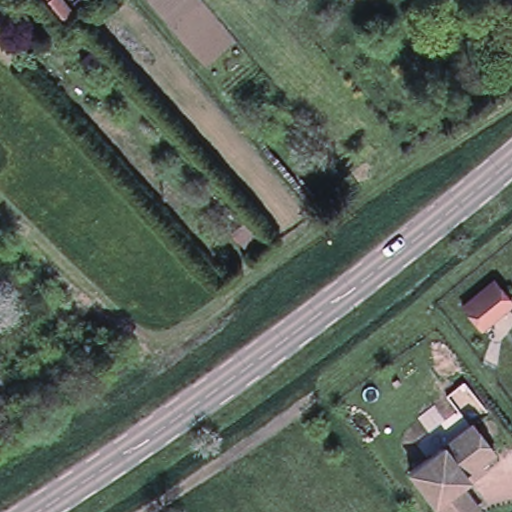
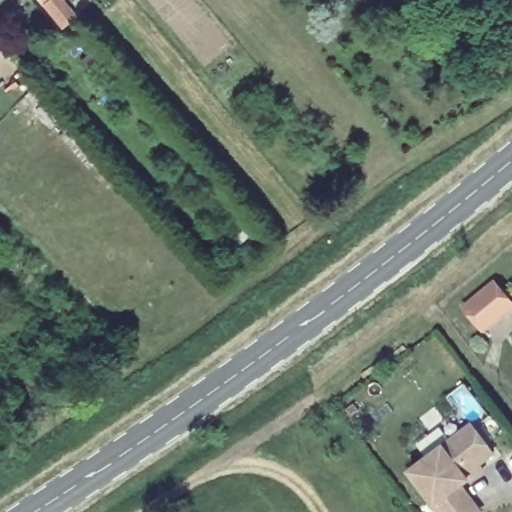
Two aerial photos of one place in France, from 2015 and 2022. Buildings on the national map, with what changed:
unchanged [(77,20),(62,32),(40,5),(45,0),(60,0),(77,20)]
unchanged [(81,0),(86,0),(90,5),(81,13),(75,5),(81,0)]
unchanged [(103,62),(92,72),(82,61),(95,51),(103,62)]
unchanged [(502,293),(512,305),(512,309),(485,332),(472,317),(465,309),(495,285),(502,293)]
unchanged [(493,452),(478,462),(482,467),(460,483),(480,511),(478,512),(444,512),(412,467),(472,424),(493,452)]

